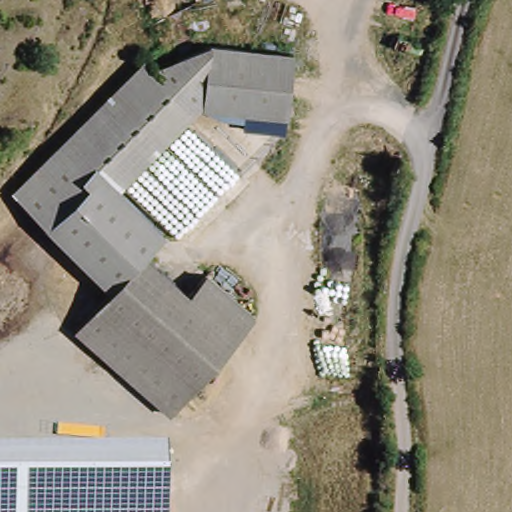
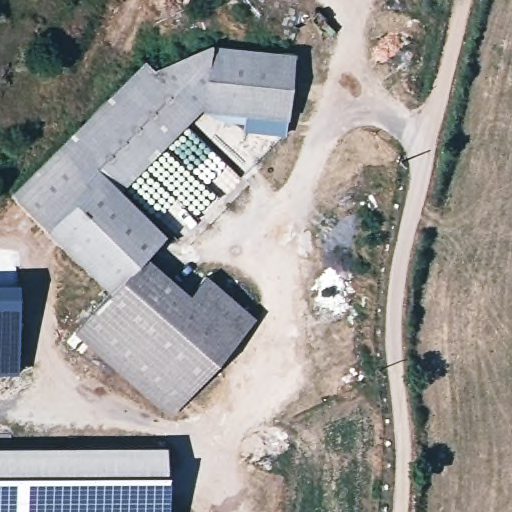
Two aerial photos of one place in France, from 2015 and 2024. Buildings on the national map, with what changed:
unchanged [(140,256),(185,299),(204,276),(252,321),(166,418),(71,335),(111,288),(7,200),(131,64),(143,65),(195,39),(282,50),(277,120),(200,110),(117,200),(155,235),(140,256)]
new [(17,278),(18,372),(0,373),(0,278),(17,278)]
unchanged [(166,444),(166,512),(0,512),(0,445),(166,444)]

